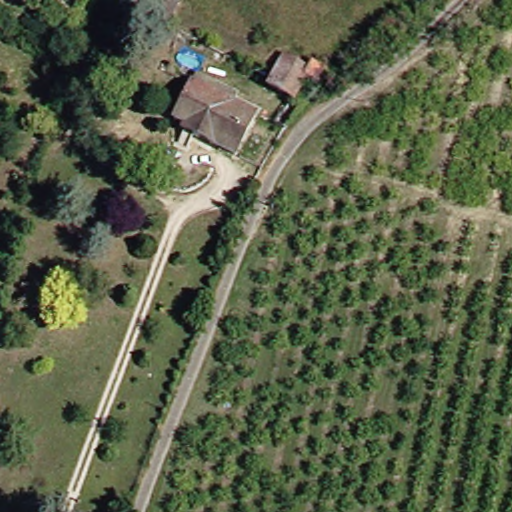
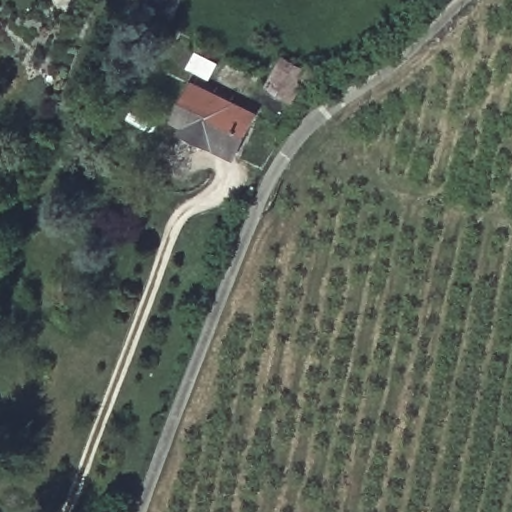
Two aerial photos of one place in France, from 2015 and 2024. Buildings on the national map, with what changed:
unchanged [(163,25),(115,0),(173,0),(175,0),(163,25)]
unchanged [(308,76),(296,70),(282,96),(260,85),(265,75),(275,55),(298,66),(302,57),(315,63),(308,76)]
unchanged [(232,156),(180,131),(182,126),(170,120),(189,84),(253,115),(232,156)]
unchanged [(282,96),(292,103),(276,126),(266,120),(282,96)]

